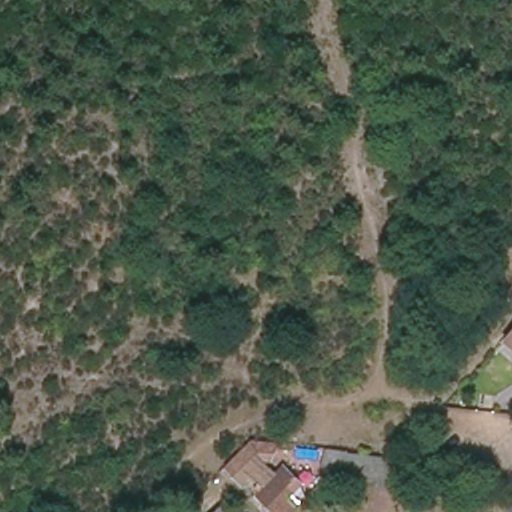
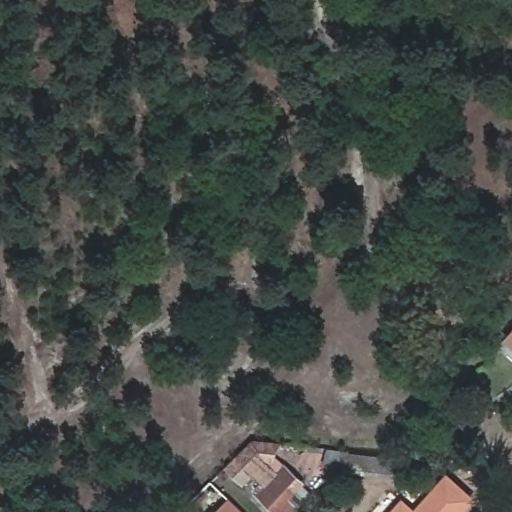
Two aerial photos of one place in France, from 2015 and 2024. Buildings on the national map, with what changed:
unchanged [(509,342),(512,338),(512,344),(509,342)]
unchanged [(262,463),(275,475),(266,485),(254,473),(245,483),(231,469),(255,444),(280,447),(272,461),(265,460),(262,463)]
unchanged [(377,479),(359,477),(360,467),(327,463),(329,445),(380,451),(377,479)]
unchanged [(287,502),(297,511),(296,512),(278,512),(261,496),(285,469),(302,485),(287,502)]
new [(477,499),(465,512),(391,512),(402,499),(416,509),(448,474),(477,499)]
unchanged [(227,506),(234,512),(221,512),(227,506)]

